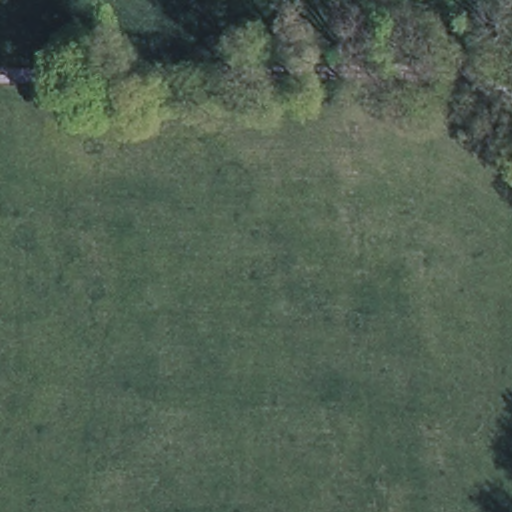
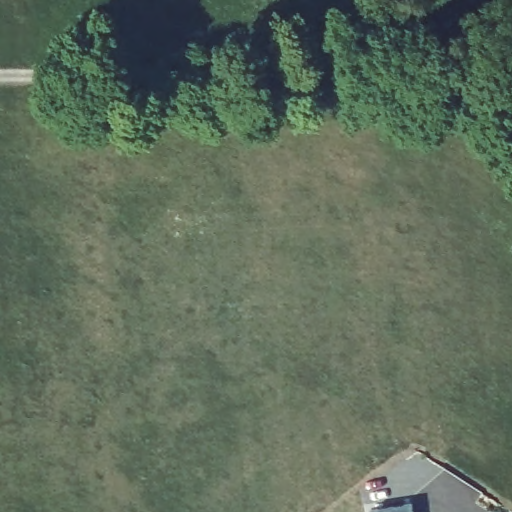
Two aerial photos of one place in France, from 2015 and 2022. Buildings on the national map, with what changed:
new [(413,512),(370,512),(369,509),(412,503),(413,512)]

